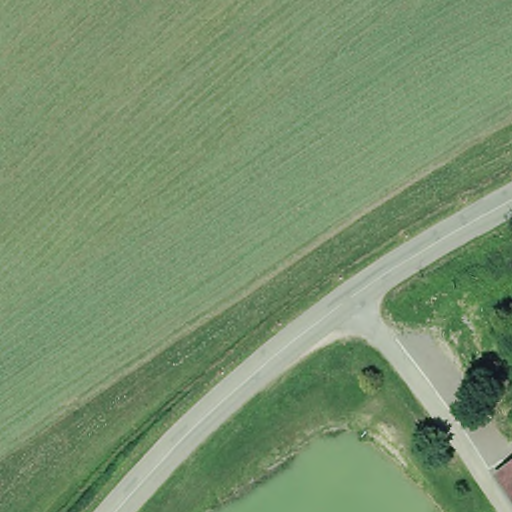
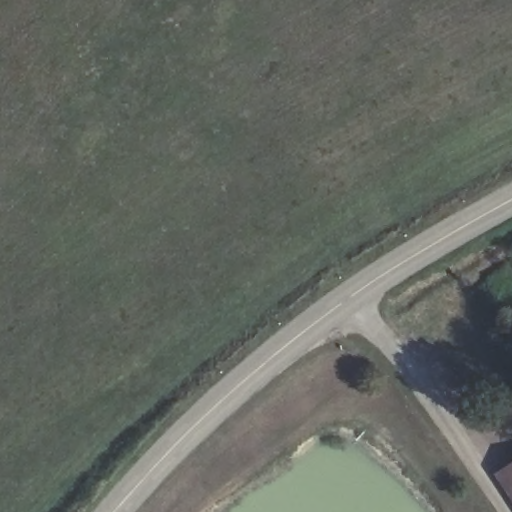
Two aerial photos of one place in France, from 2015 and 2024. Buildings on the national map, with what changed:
unchanged [(494,475),(512,463),(512,501),(494,475)]

